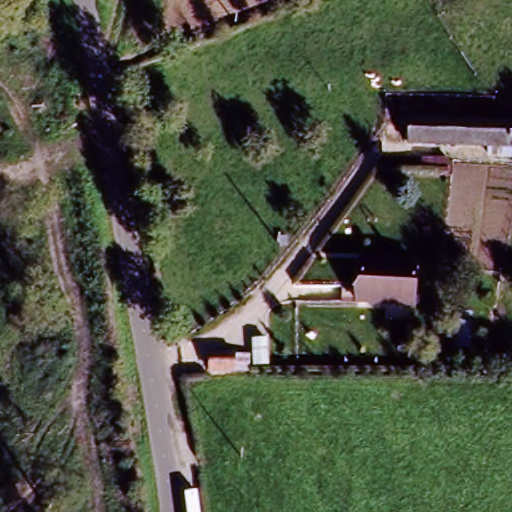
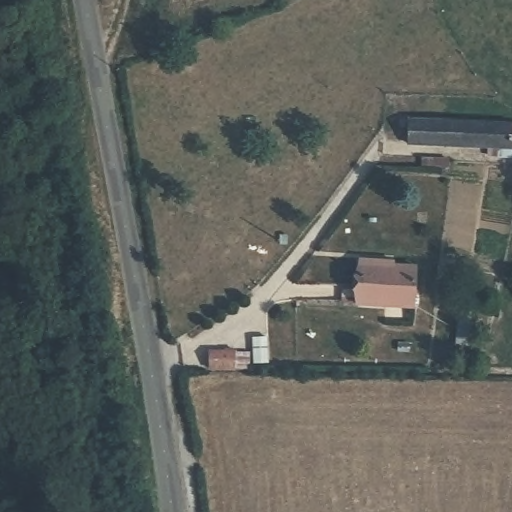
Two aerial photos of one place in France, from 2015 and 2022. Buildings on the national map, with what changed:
unchanged [(511,143),(408,138),(410,113),(512,119),(512,135),(511,143)]
unchanged [(452,159),(451,170),(426,167),(426,156),(452,159)]
unchanged [(378,266),(414,268),(412,309),(355,306),(357,261),(378,262),(378,266)]
unchanged [(255,338),(270,336),(266,361),(253,362),(255,338)]
unchanged [(208,349),(234,350),(235,366),(233,366),(207,366),(208,349)]

